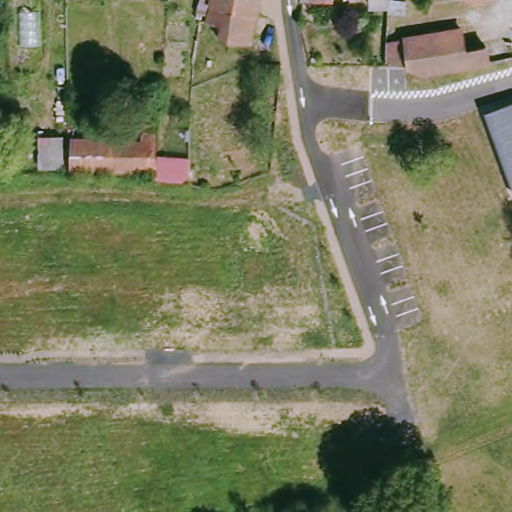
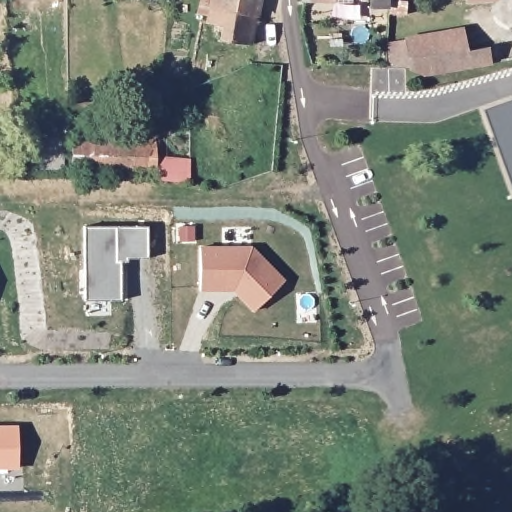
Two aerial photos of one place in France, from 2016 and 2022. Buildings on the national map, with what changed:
unchanged [(261,14),(258,14),(212,6),(214,0),(264,0),(261,14)]
unchanged [(301,3),(301,0),(330,0),(330,3),(301,3)]
unchanged [(384,9),(369,9),(369,0),(384,0),(384,9)]
unchanged [(407,67),(383,69),(386,28),(387,16),(388,3),(405,5),(404,18),(405,41),(407,67)]
unchanged [(258,14),(253,42),(222,38),(224,23),(207,20),(212,6),(258,14)]
unchanged [(461,36),(462,45),(484,43),(486,60),(407,67),(405,41),(461,36)]
new [(486,111),(512,102),(512,189),(486,111)]
unchanged [(67,164),(45,165),(45,135),(67,134),(67,164)]
unchanged [(163,182),(163,176),(73,165),(74,134),(151,144),(152,136),(165,137),(165,158),(196,162),(195,185),(163,182)]
new [(83,225),(147,225),(147,257),(127,257),(127,261),(115,260),(115,272),(120,272),(120,299),(83,299),(83,225)]
new [(199,247),(250,247),(283,280),(252,309),(237,294),(240,292),(235,286),(232,289),(198,289),(199,247)]
new [(17,466),(0,467),(0,426),(17,426),(17,466)]

